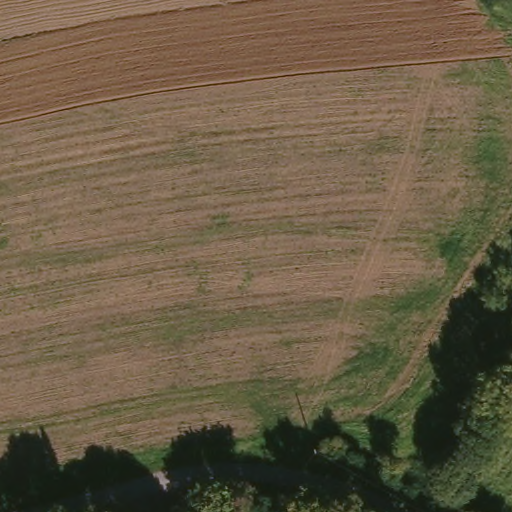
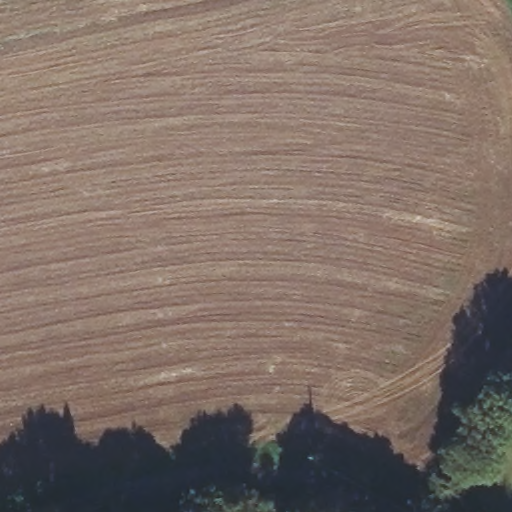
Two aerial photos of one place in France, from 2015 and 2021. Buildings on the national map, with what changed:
[]

